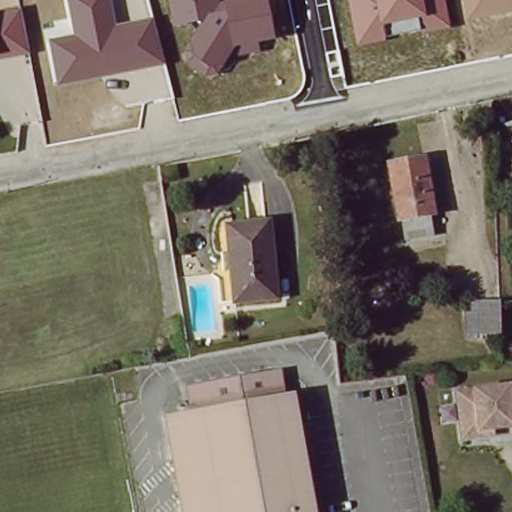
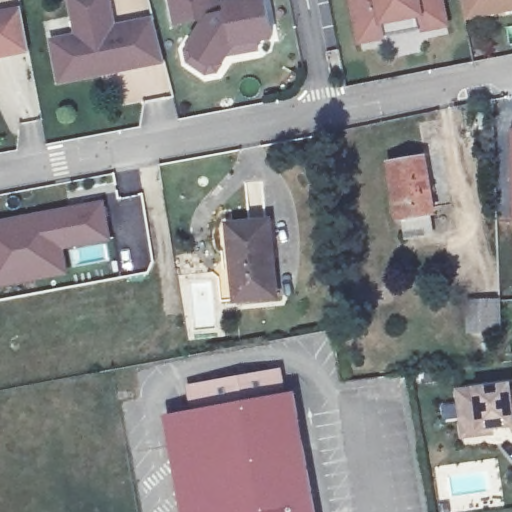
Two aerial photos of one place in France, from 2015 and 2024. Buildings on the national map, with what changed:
unchanged [(59,86),(49,39),(75,35),(68,0),(110,0),(116,24),(154,18),(166,64),(59,86)]
unchanged [(259,44),(260,51),(232,56),(218,75),(206,76),(187,63),(183,52),(202,21),(174,26),(169,0),(219,0),(220,2),(227,1),(230,0),(267,0),(275,39),(259,44)]
unchanged [(450,29),(421,34),(420,29),(386,36),(387,41),(358,47),(349,0),(445,0),(450,29)]
unchanged [(462,0),(512,0),(512,14),(466,24),(462,0)]
unchanged [(23,7),(32,53),(0,58),(0,10),(23,7)]
unchanged [(433,214),(398,216),(394,160),(427,158),(433,214)]
new [(105,200),(113,242),(67,251),(70,274),(0,288),(0,221),(105,200)]
unchanged [(280,293),(239,297),(232,221),(272,217),(280,293)]
unchanged [(503,333),(469,334),(468,300),(500,298),(503,333)]
unchanged [(197,413),(192,387),(282,371),(287,397),(296,395),(317,512),(186,512),(169,418),(197,413)]
unchanged [(456,387),(512,383),(512,430),(462,435),(456,387)]

